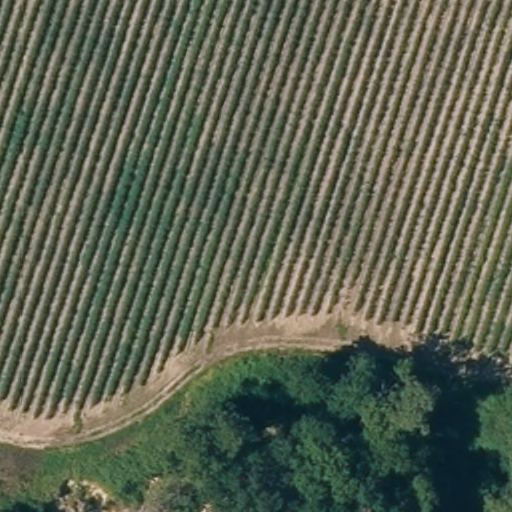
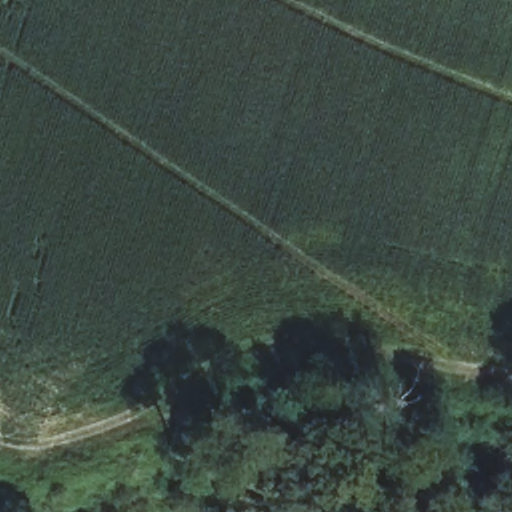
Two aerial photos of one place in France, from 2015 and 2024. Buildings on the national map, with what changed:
[]

